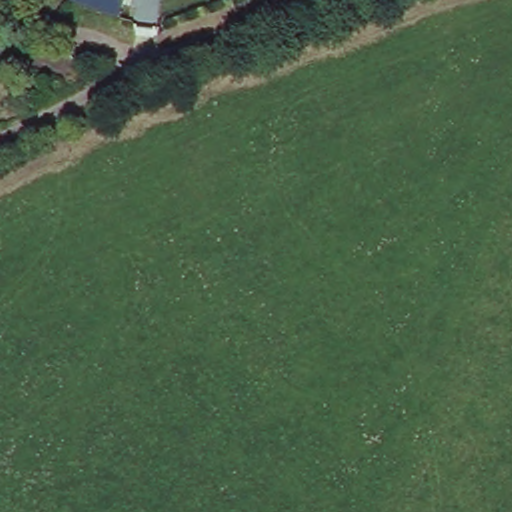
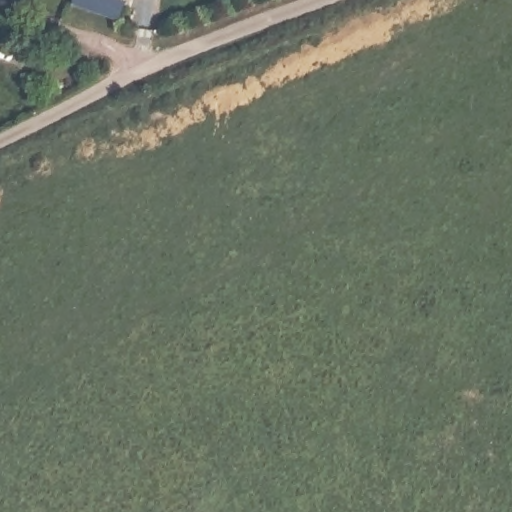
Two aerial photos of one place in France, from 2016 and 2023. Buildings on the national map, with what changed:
unchanged [(124,0),(116,21),(69,3),(71,0),(124,0)]

